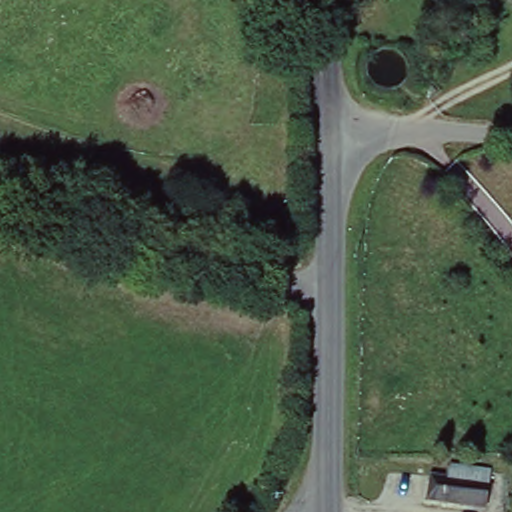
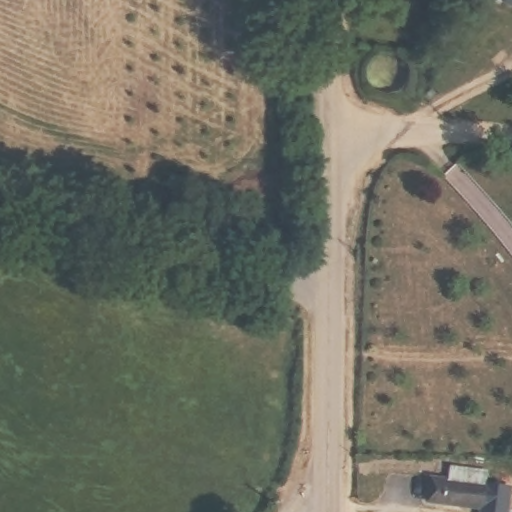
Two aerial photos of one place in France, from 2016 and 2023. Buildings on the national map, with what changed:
unchanged [(486,472),(486,507),(431,507),(432,484),(452,485),(451,472),(486,472)]

